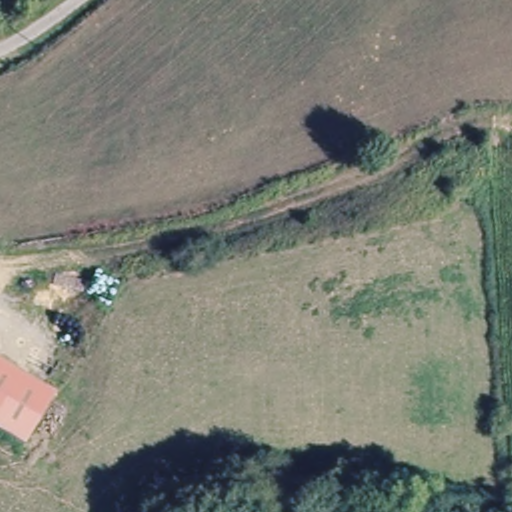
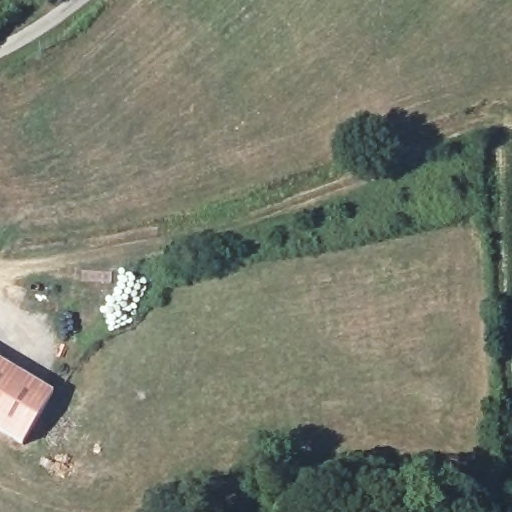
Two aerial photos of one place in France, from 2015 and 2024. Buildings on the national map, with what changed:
unchanged [(22,448),(0,436),(0,368),(50,395),(22,448)]

